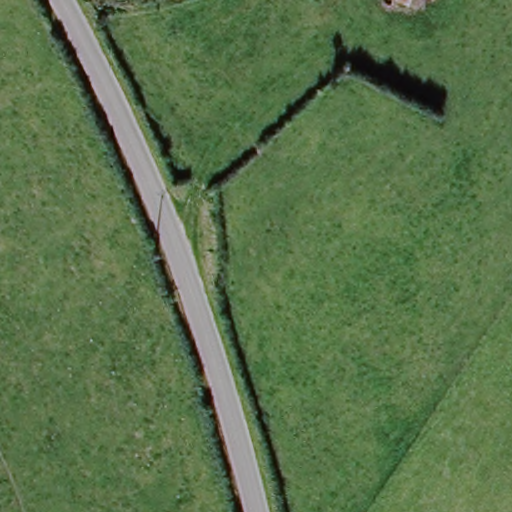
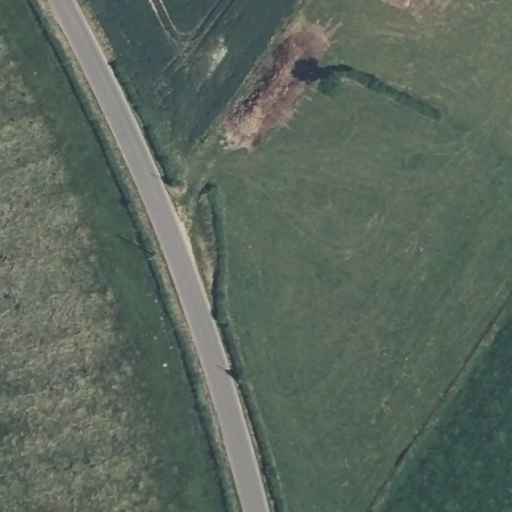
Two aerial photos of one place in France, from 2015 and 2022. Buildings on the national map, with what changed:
unchanged [(415,6),(397,0),(417,0),(415,6)]

